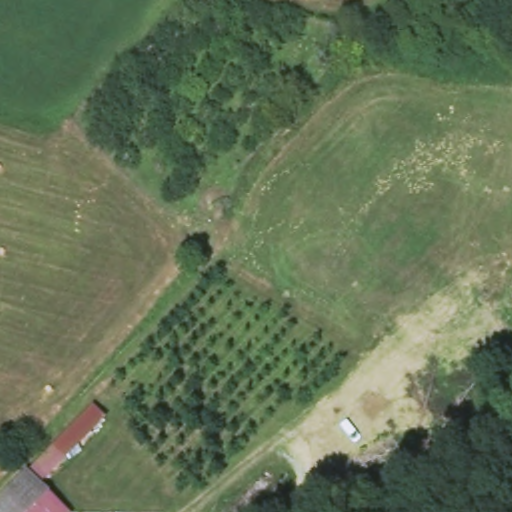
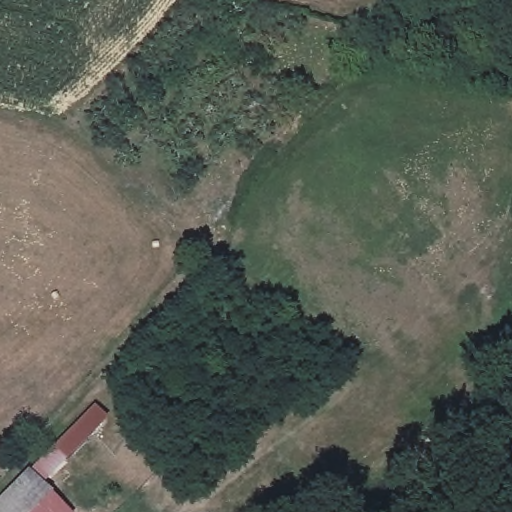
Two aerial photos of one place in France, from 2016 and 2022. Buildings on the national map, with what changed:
unchanged [(55,442),(93,404),(109,419),(73,456),(55,442)]
unchanged [(73,456),(50,481),(59,490),(42,512),(35,512),(30,510),(29,512),(0,512),(0,496),(55,442),(73,456)]
unchanged [(76,512),(42,512),(59,490),(76,512)]
unchanged [(35,512),(29,512),(30,510),(35,512)]

